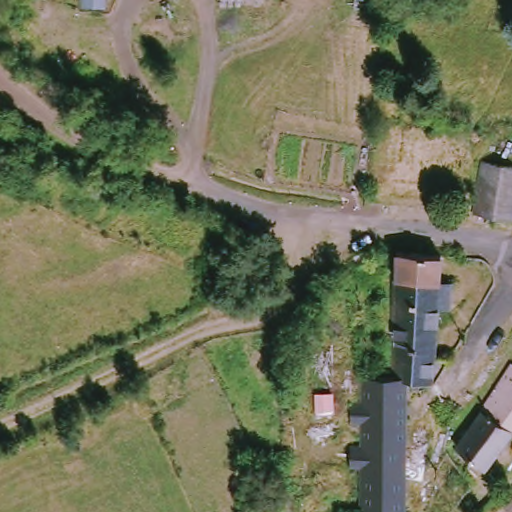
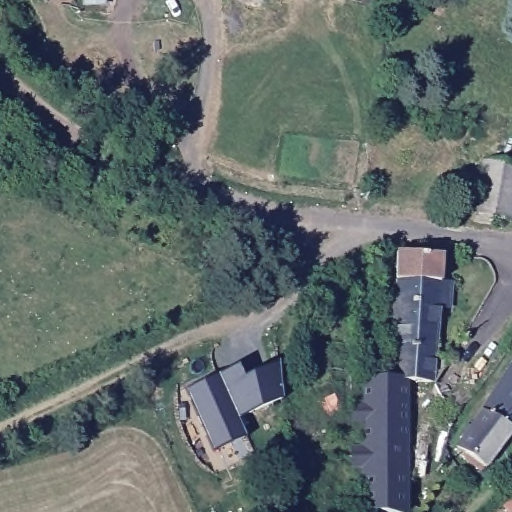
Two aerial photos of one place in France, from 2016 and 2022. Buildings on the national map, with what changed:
unchanged [(83,8),(84,0),(107,0),(107,9),(83,8)]
unchanged [(484,163),(512,168),(512,215),(511,218),(476,212),(484,163)]
unchanged [(433,382),(425,382),(401,381),(385,380),(392,252),(436,255),(435,283),(445,284),(443,309),(432,309),(427,356),(448,356),(433,382)]
unchanged [(512,421),(509,426),(477,406),(508,359),(512,353),(512,421)]
new [(238,419),(246,437),(215,450),(187,390),(237,369),(242,380),(277,363),(279,384),(282,400),(238,419)]
unchanged [(376,512),(363,510),(360,484),(361,447),(360,379),(385,380),(401,381),(400,395),(398,512),(376,512)]
unchanged [(509,426),(480,464),(451,441),(477,406),(509,426)]
unchanged [(512,512),(507,512),(505,506),(512,501),(512,512)]

